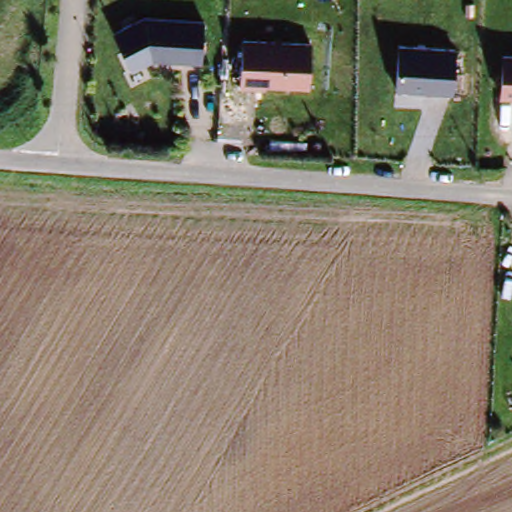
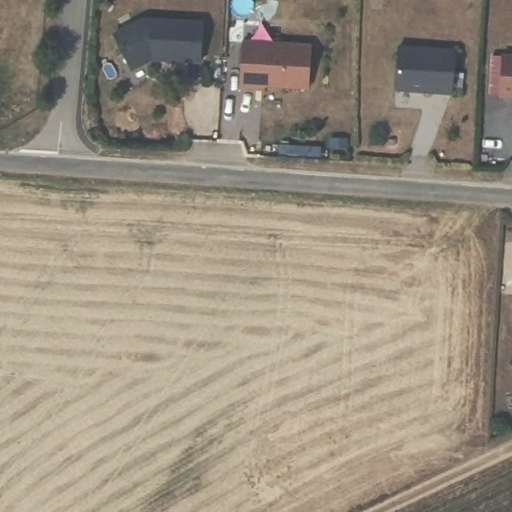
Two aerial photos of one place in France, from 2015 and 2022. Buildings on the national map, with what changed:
unchanged [(144,14),(203,18),(203,61),(152,58),(131,70),(110,31),(144,14)]
unchanged [(311,43),(310,89),(239,86),(241,39),(311,43)]
unchanged [(453,94),(396,90),(399,44),(456,48),(453,94)]
unchanged [(512,94),(501,94),(502,50),(512,50),(512,94)]

